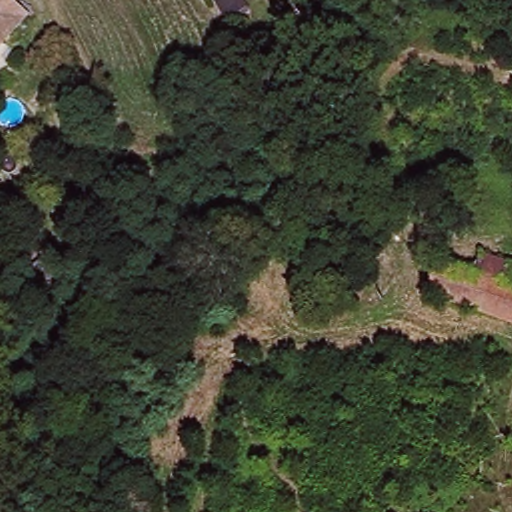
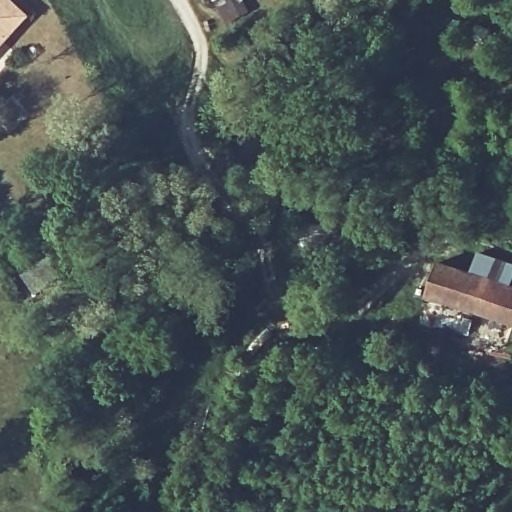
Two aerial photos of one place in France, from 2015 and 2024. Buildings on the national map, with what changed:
unchanged [(0,41),(0,0),(8,0),(23,14),(0,41)]
unchanged [(377,218),(370,258),(300,250),(307,196),(315,178),(339,182),(338,201),(352,202),(356,187),(427,195),(426,223),(377,218)]
unchanged [(437,266),(470,277),(479,256),(512,269),(512,272),(506,289),(512,291),(512,326),(425,297),(437,266)]

